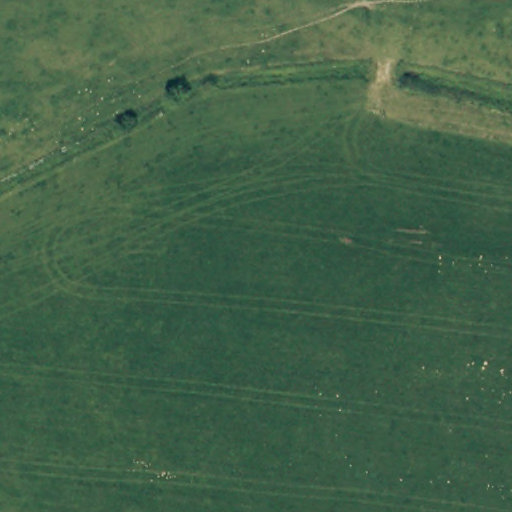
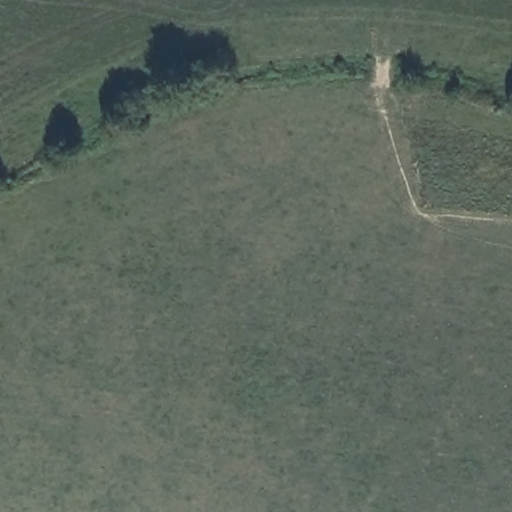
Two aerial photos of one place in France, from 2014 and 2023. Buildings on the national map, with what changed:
[]

